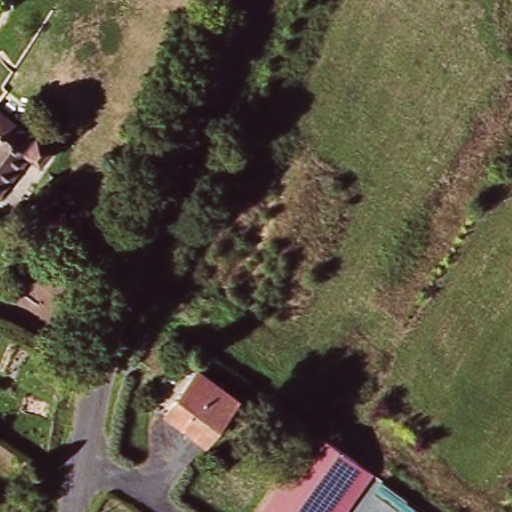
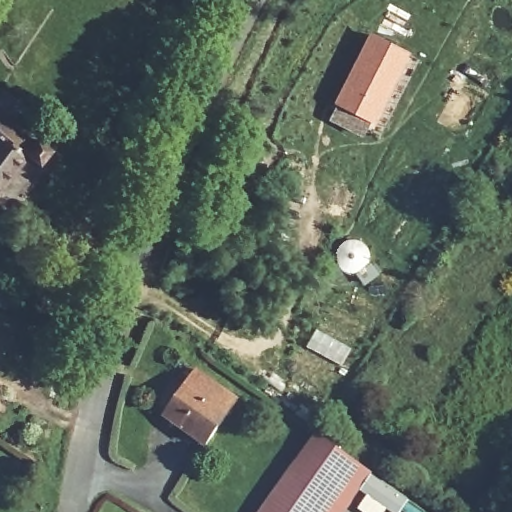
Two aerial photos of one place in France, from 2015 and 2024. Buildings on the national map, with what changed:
new [(369,30),(411,52),(385,102),(372,125),(362,137),(326,119),(332,103),(369,30)]
unchanged [(12,118),(39,139),(40,137),(54,147),(42,161),(32,152),(0,193),(0,109),(12,118)]
new [(365,269),(371,265),(379,275),(365,286),(357,273),(350,274),(342,271),(337,265),(335,256),(337,249),(343,243),(350,240),(359,241),(365,246),(369,254),(369,262),(365,269)]
unchanged [(244,404),(212,448),(159,411),(190,367),(244,404)]
unchanged [(317,436),(360,466),(326,512),(259,512),(315,435),(317,436)]
unchanged [(360,466),(372,475),(412,500),(403,512),(395,512),(362,488),(344,512),(326,512),(360,466)]

